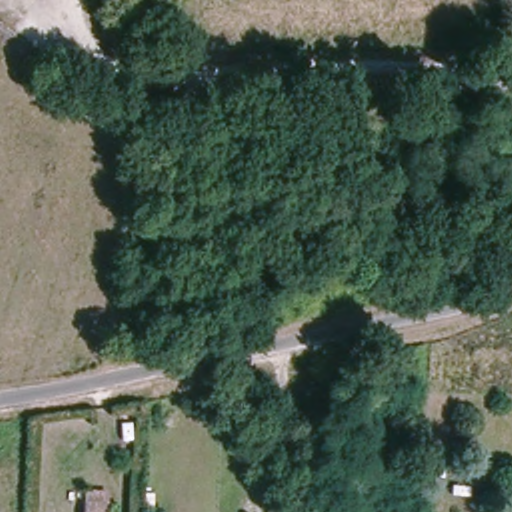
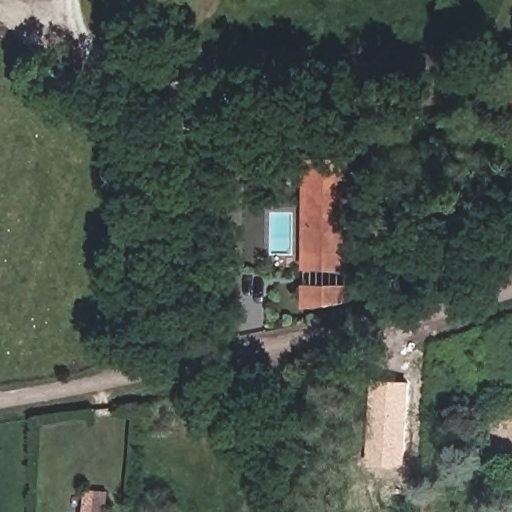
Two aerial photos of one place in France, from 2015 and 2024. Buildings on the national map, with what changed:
new [(303,155),(351,155),(350,300),(303,307),(303,155)]
new [(411,381),(406,467),(367,465),(372,379),(411,381)]
demolished [(156,457),(175,459),(172,495),(154,493),(156,457)]
unchanged [(107,512),(82,512),(83,500),(107,502),(107,512)]

